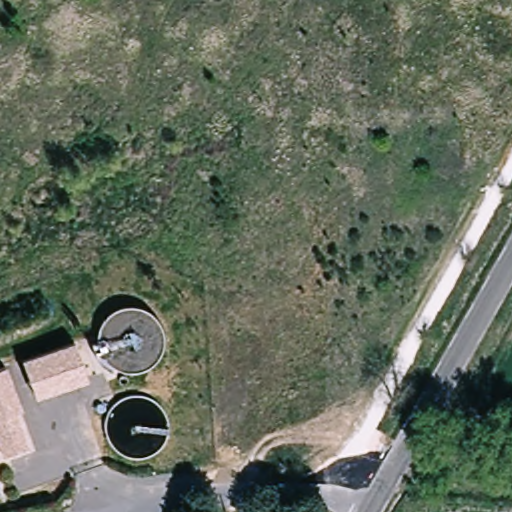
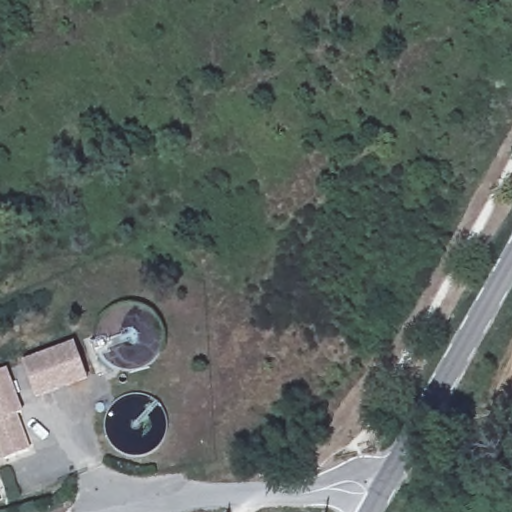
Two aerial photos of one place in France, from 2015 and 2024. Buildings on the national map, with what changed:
unchanged [(74,341),(87,376),(35,396),(22,361),(74,341)]
unchanged [(0,369),(5,367),(22,412),(15,414),(28,449),(5,458),(0,445),(0,369)]

